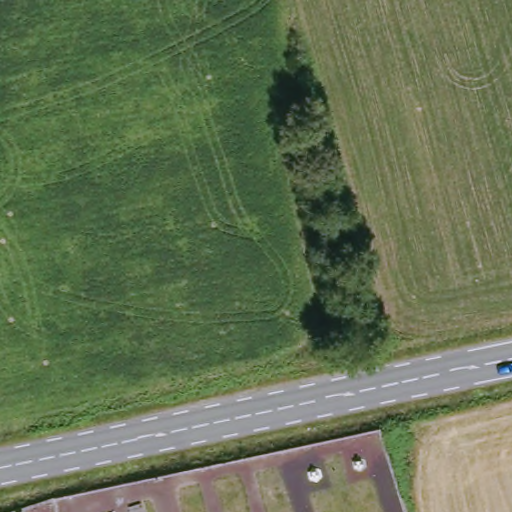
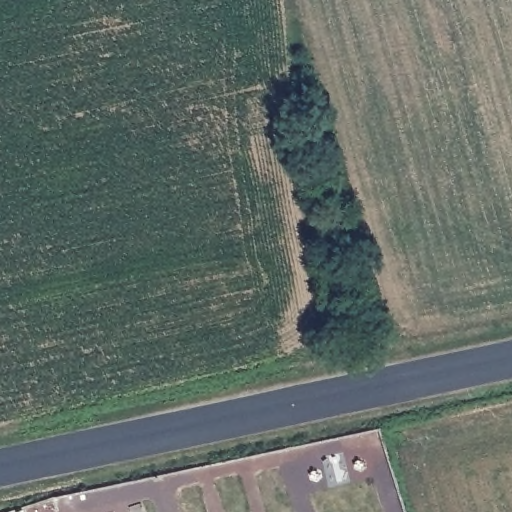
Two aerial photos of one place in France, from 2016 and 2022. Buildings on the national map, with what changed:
[]

